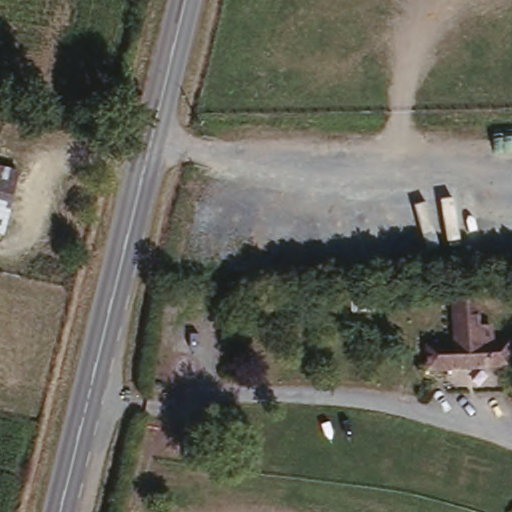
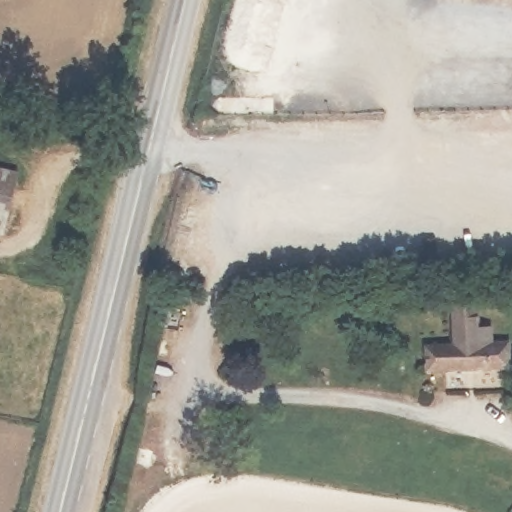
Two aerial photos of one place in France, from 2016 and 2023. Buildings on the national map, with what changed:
unchanged [(0,233),(0,167),(18,171),(4,234),(0,233)]
unchanged [(510,337),(512,354),(512,362),(425,372),(422,342),(510,337)]

